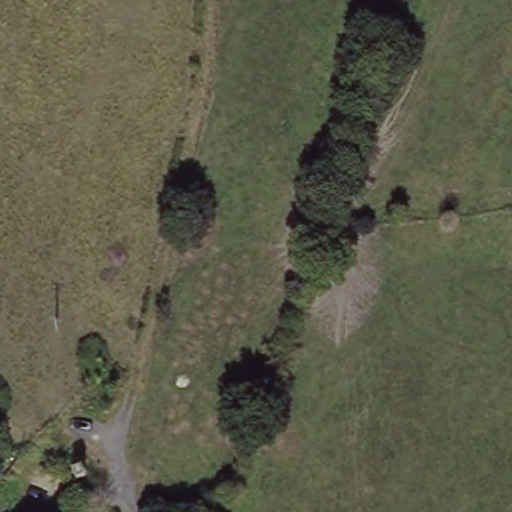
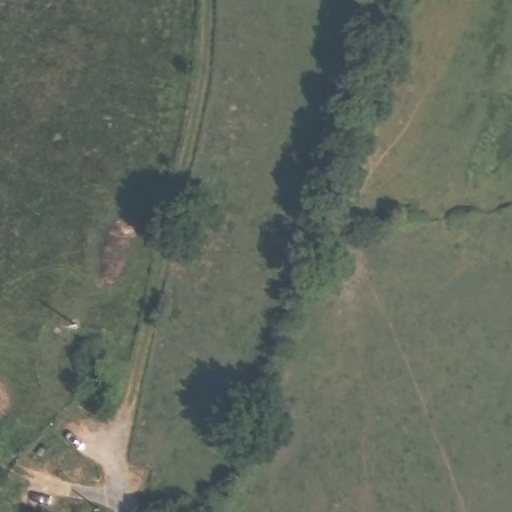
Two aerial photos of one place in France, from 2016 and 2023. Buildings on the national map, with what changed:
unchanged [(81,466),(85,477),(76,480),(72,470),(81,466)]

